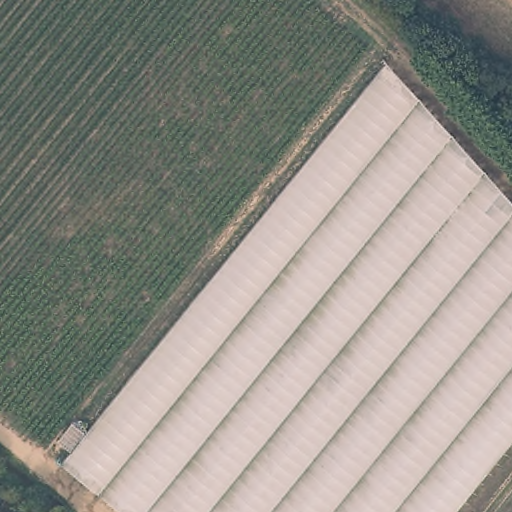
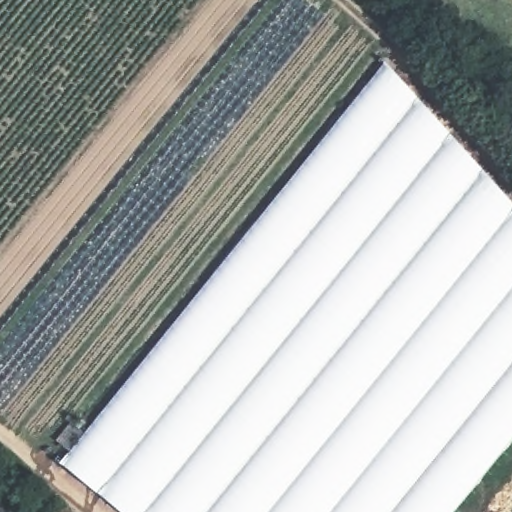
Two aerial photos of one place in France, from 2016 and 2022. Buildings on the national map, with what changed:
unchanged [(512,204),(512,440),(452,512),(117,512),(58,462),(392,60),(512,204)]

